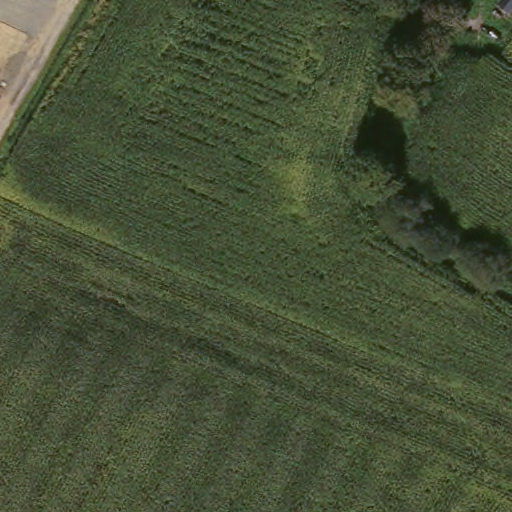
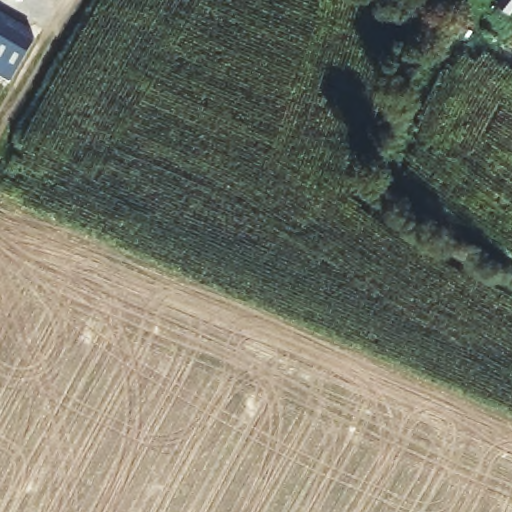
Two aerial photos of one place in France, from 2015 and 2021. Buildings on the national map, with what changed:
unchanged [(503,1),(504,0),(512,0),(512,8),(503,1)]
new [(0,16),(35,37),(10,77),(0,71),(0,16)]

